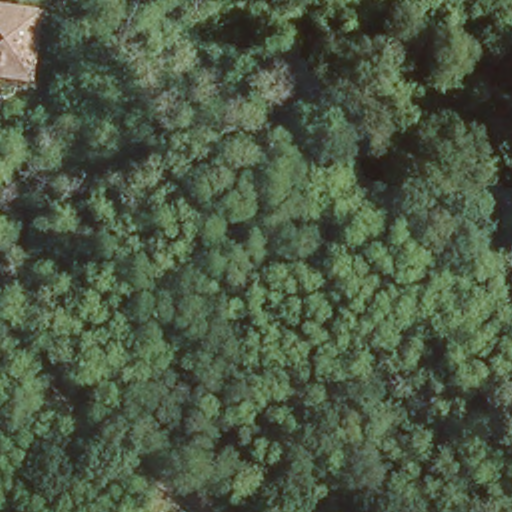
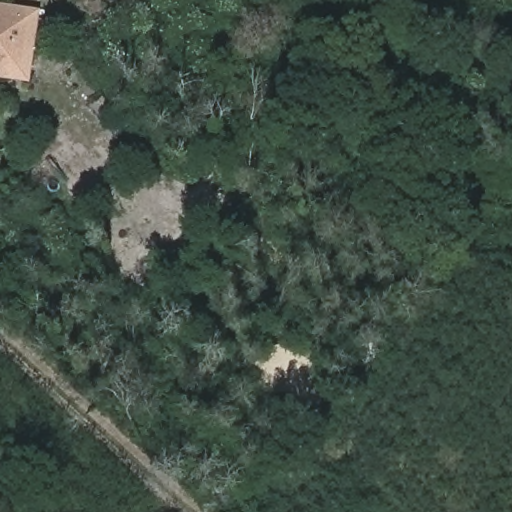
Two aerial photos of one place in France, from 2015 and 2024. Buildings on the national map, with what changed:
unchanged [(33,22),(22,91),(0,87),(0,15),(33,22)]

